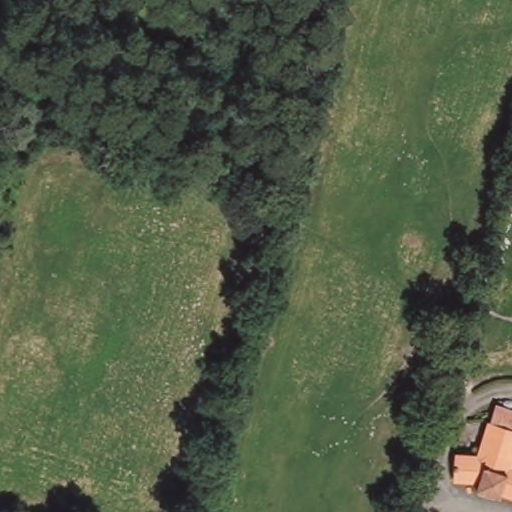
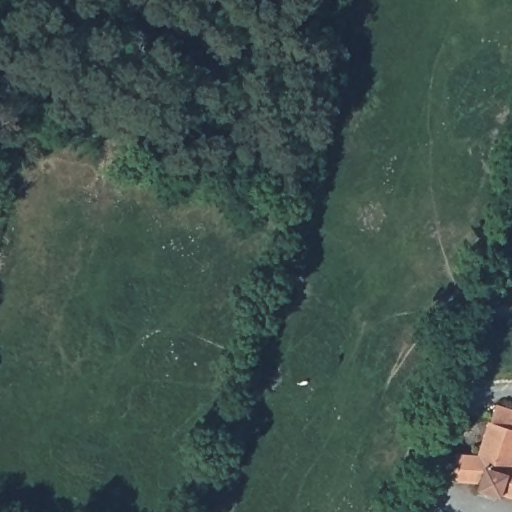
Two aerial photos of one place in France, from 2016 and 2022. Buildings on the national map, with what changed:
unchanged [(485,424),(512,434),(512,500),(496,494),(495,499),(477,493),(481,483),(455,482),(456,459),(476,458),(485,424)]

